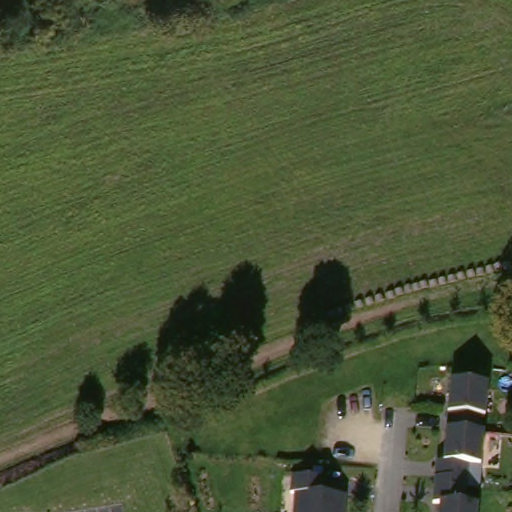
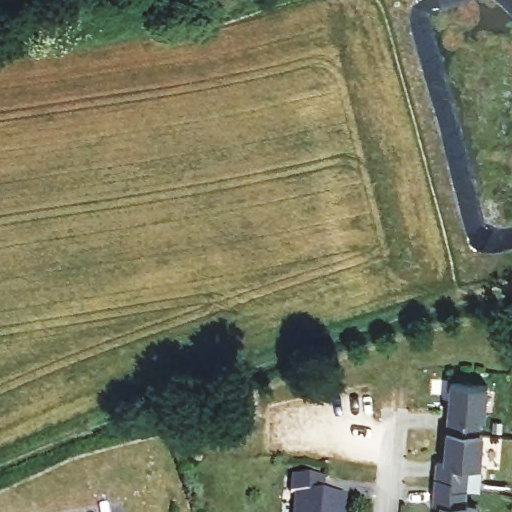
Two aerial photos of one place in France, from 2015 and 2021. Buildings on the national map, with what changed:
unchanged [(436,426),(439,379),(477,382),(475,413),(470,413),(469,428),(436,426)]
unchanged [(474,429),(473,459),(461,459),(460,483),(443,482),(443,473),(427,472),(427,457),(435,457),(436,426),(469,428),(474,429)]
unchanged [(443,482),(460,483),(459,498),(471,499),(471,512),(433,512),(433,497),(426,497),(427,472),(443,473),(443,482)]
unchanged [(294,496),(289,496),(290,478),(323,481),(322,496),(345,497),(345,512),(293,512),(294,496)]

